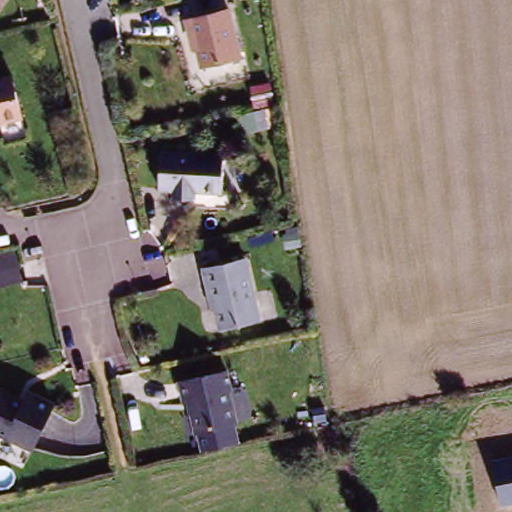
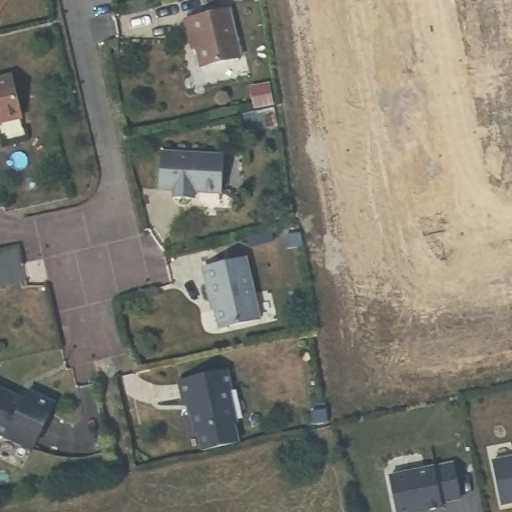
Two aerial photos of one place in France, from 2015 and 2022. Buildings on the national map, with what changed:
unchanged [(6,0),(0,10),(0,0),(6,0)]
unchanged [(196,29),(190,30),(187,13),(233,6),(241,54),(201,60),(196,29)]
unchanged [(7,72),(18,113),(0,118),(0,74),(7,72)]
unchanged [(164,148),(227,155),(225,186),(206,184),(205,195),(178,192),(180,182),(160,180),(164,148)]
unchanged [(246,250),(261,313),(223,321),(216,293),(210,294),(202,259),(246,250)]
unchanged [(188,402),(182,403),(180,374),(231,370),(234,422),(190,425),(188,402)]
unchanged [(55,408),(30,451),(0,434),(0,388),(22,400),(27,391),(55,408)]
unchanged [(492,460),(512,455),(512,504),(501,506),(492,460)]
new [(461,495),(442,499),(443,504),(409,512),(397,512),(390,474),(454,460),(461,495)]

